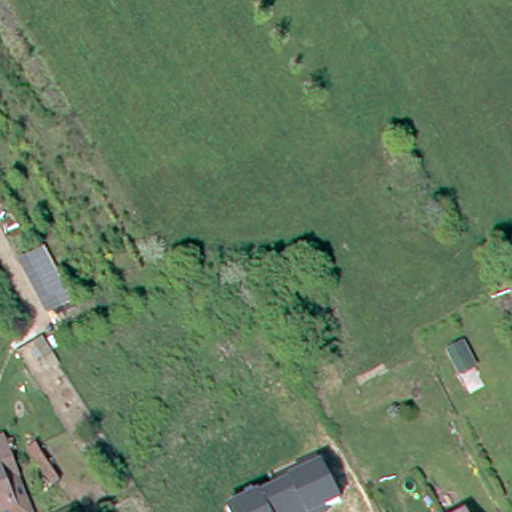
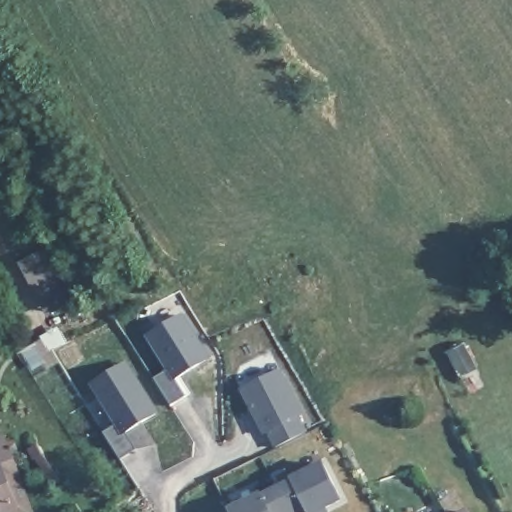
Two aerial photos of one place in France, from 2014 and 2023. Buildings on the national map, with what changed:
new [(185,396),(170,405),(155,378),(165,371),(145,337),(182,314),(210,360),(176,381),(185,396)]
new [(137,449),(120,460),(104,433),(114,426),(89,384),(128,361),(159,414),(126,434),(137,449)]
new [(240,389),(281,369),(304,414),(300,415),(307,430),(275,446),(268,433),(263,436),(240,389)]
unchanged [(9,477),(0,480),(0,454),(9,477)]
unchanged [(57,481),(50,485),(32,458),(39,454),(57,481)]
unchanged [(322,461),(341,501),(326,507),(329,512),(228,512),(227,510),(260,492),(289,478),(322,461)]
unchanged [(10,505),(0,509),(0,480),(10,505)]

